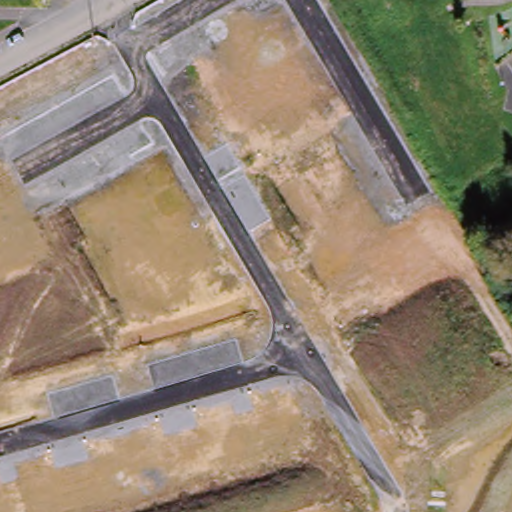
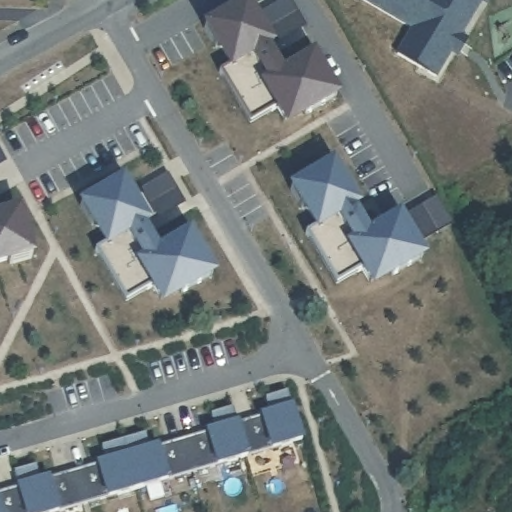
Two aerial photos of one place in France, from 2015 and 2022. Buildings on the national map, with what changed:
new [(341,99),(285,133),(269,107),(249,123),(220,72),(225,67),(200,27),(245,0),(246,0),(274,48),(270,51),(283,73),(313,53),(341,99)]
new [(461,35),(468,39),(460,57),(452,54),(438,80),(395,54),(412,29),(361,0),(482,0),(461,35)]
new [(296,8),(307,27),(283,40),(272,22),(296,8)]
new [(361,208),(356,211),(368,233),(399,215),(426,261),(371,293),(356,269),(335,284),(302,232),(310,224),(287,187),(331,161),(361,208)]
new [(152,224),(146,228),(158,249),(191,231),(217,277),(162,309),(146,285),(126,302),(95,250),(100,242),(77,205),(122,178),(152,224)]
new [(20,210),(34,259),(0,270),(0,216),(20,210)]
new [(271,453),(267,445),(246,451),(248,458),(216,467),(213,459),(166,474),(167,480),(106,500),(104,491),(57,506),(59,512),(0,512),(0,489),(17,484),(12,471),(36,464),(40,477),(49,474),(94,461),(104,458),(101,445),(146,433),(150,445),(157,443),(212,426),(209,414),(232,406),(237,420),(267,410),(264,398),(286,390),(305,443),(271,453)]

